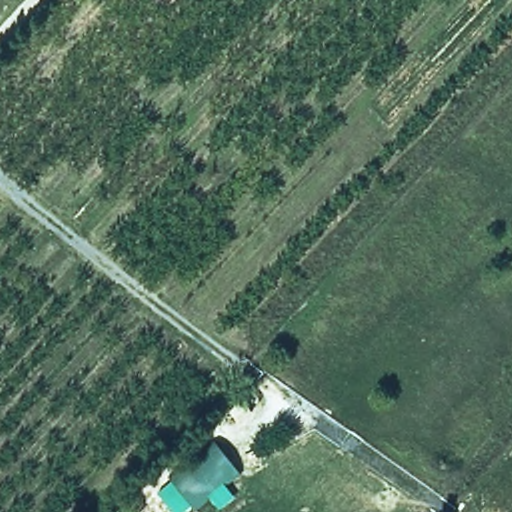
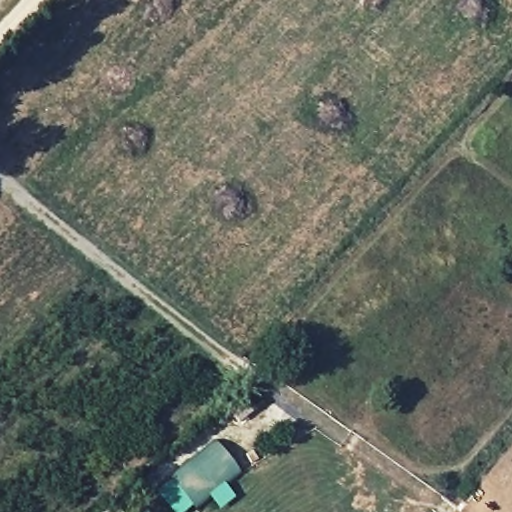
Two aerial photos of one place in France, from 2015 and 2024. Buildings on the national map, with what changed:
unchanged [(240,475),(196,512),(195,512),(170,479),(217,441),(240,475)]

